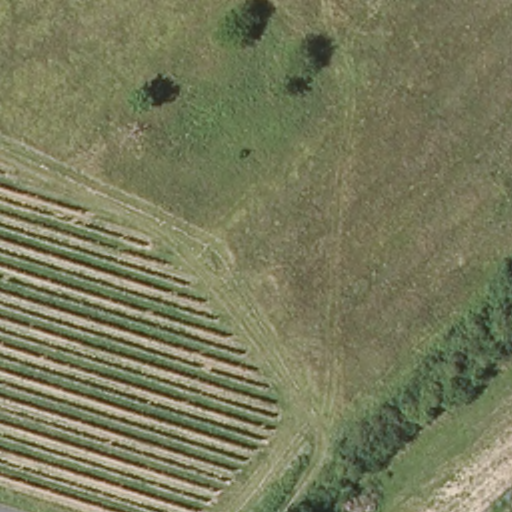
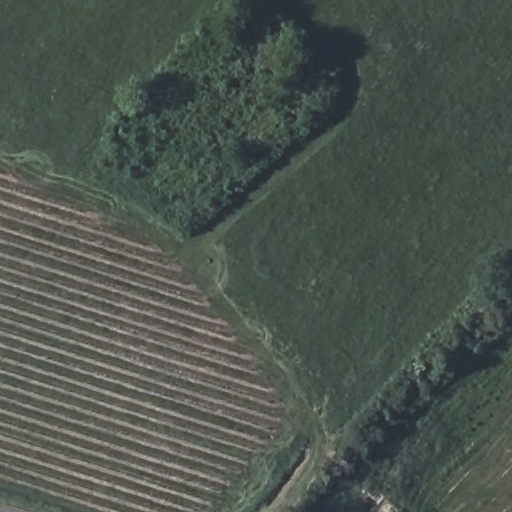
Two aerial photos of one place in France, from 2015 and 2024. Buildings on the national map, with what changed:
[]

